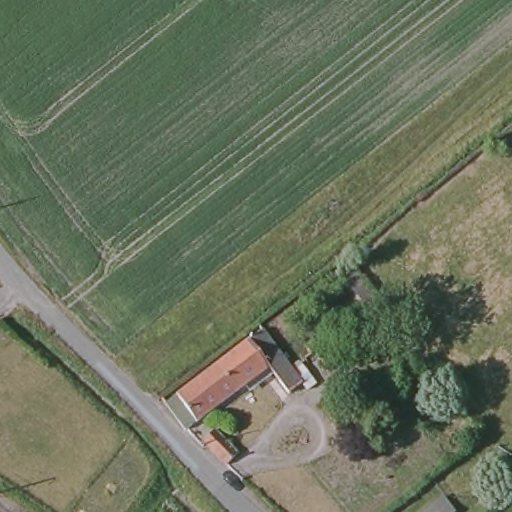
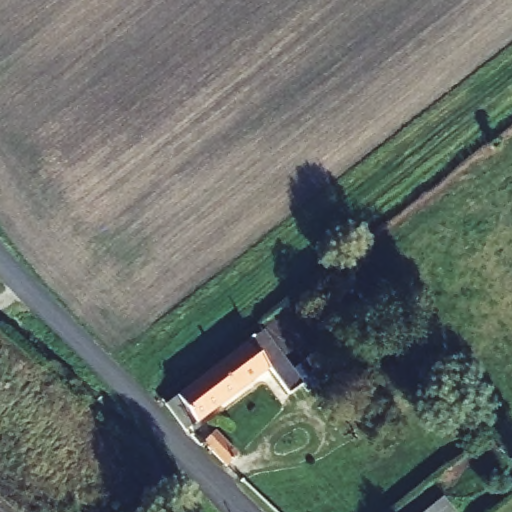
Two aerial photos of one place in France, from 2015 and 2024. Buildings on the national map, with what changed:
unchanged [(269,318),(315,375),(290,396),(262,364),(183,425),(162,404),(269,318)]
unchanged [(206,425),(231,447),(217,463),(194,440),(206,425)]
unchanged [(453,512),(430,512),(442,501),(453,512)]

